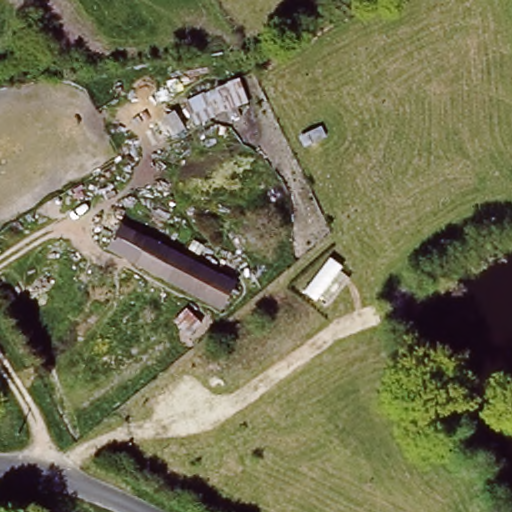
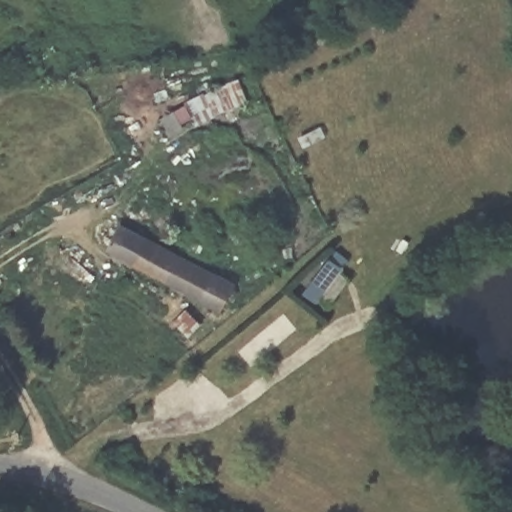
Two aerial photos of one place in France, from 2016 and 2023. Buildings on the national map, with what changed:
unchanged [(180,101),(201,95),(233,80),(245,105),(210,119),(192,125),(180,101)]
unchanged [(177,255),(234,284),(222,310),(106,253),(120,224),(177,255)]

